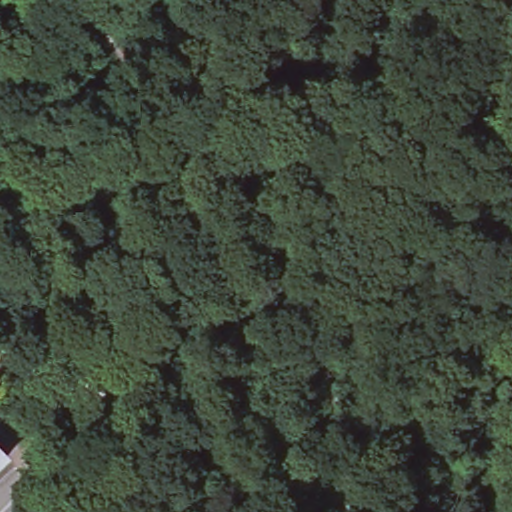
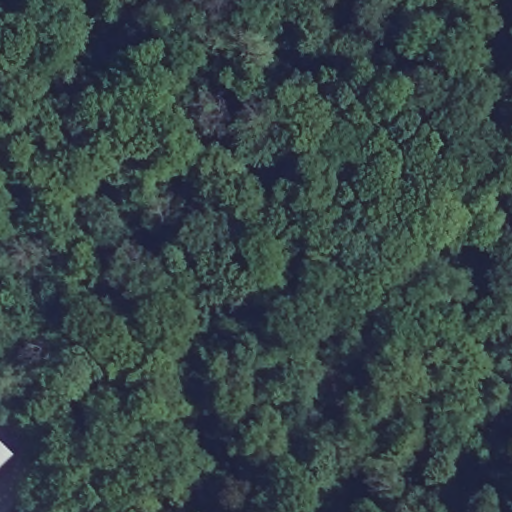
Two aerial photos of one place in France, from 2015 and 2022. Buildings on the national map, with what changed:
unchanged [(5,458),(0,463),(0,452),(5,458)]

